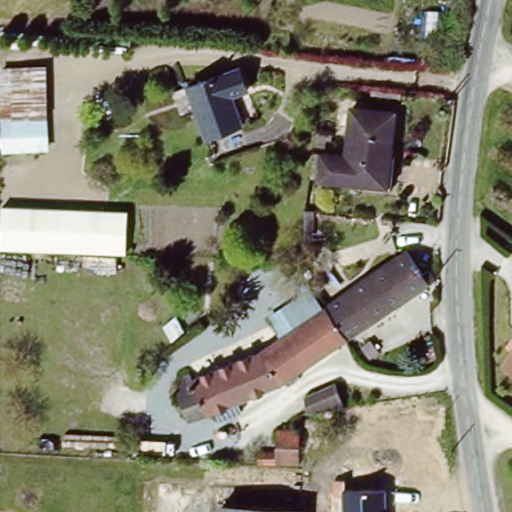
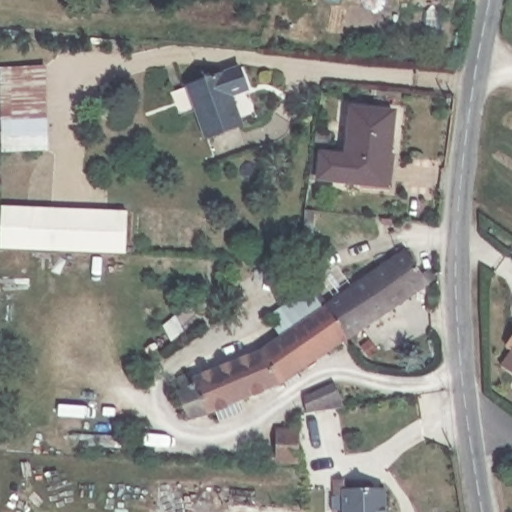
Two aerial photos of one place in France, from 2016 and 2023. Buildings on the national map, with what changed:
unchanged [(207,142),(189,90),(243,71),(250,93),(234,99),(245,129),(207,142)]
unchanged [(3,72),(47,74),(45,140),(7,139),(3,72)]
unchanged [(320,156),(340,158),(346,159),(350,129),(352,112),(394,117),(391,134),(382,190),(337,185),(317,182),(320,156)]
unchanged [(127,253),(0,248),(0,237),(2,205),(128,210),(127,253)]
unchanged [(375,268),(380,277),(415,256),(432,281),(438,277),(444,287),(350,346),(330,312),(322,298),(375,268)]
unchanged [(330,312),(283,342),(266,317),(314,287),(322,298),(330,312)]
unchanged [(350,346),(297,377),(300,382),(287,391),(285,386),(233,411),(237,420),(220,427),(216,419),(190,432),(176,405),(182,401),(177,391),(189,383),(192,391),(266,352),(330,312),(350,346)]
unchanged [(509,342),(512,337),(512,344),(509,342)]
unchanged [(303,395),(335,385),(345,407),(307,415),(303,395)]
unchanged [(257,453),(271,453),(272,436),(294,436),(294,467),(257,465),(257,453)]
unchanged [(377,490),(387,490),(389,512),(335,512),(335,500),(338,498),(338,483),(376,480),(377,490)]
unchanged [(284,512),(223,512),(224,509),(284,512)]

